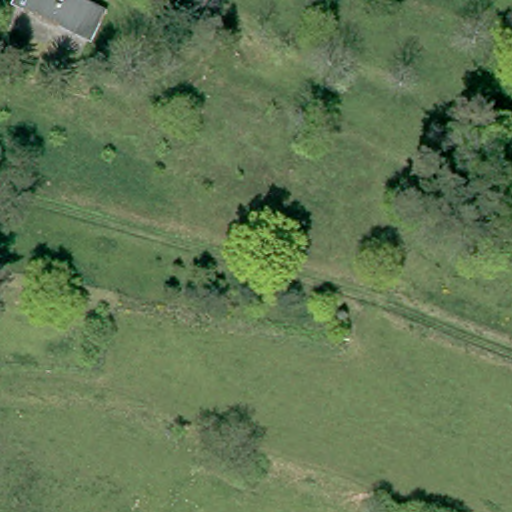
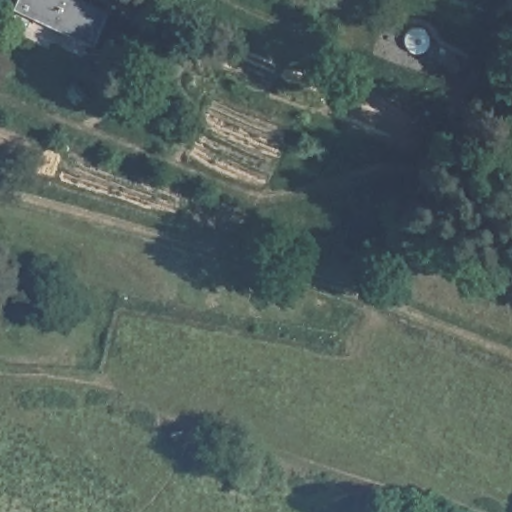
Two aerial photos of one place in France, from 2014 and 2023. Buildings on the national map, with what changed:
unchanged [(104,21),(90,47),(9,8),(14,0),(62,0),(104,21)]

